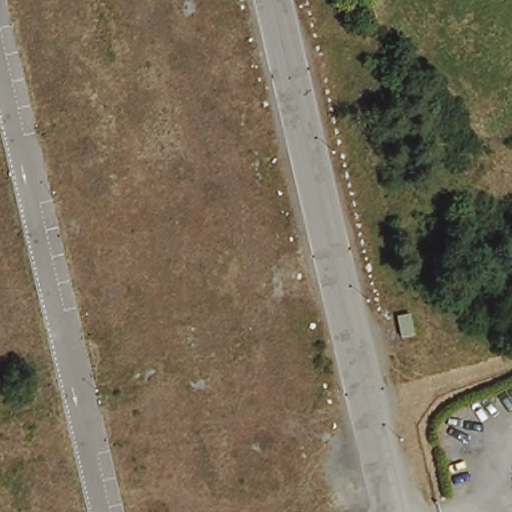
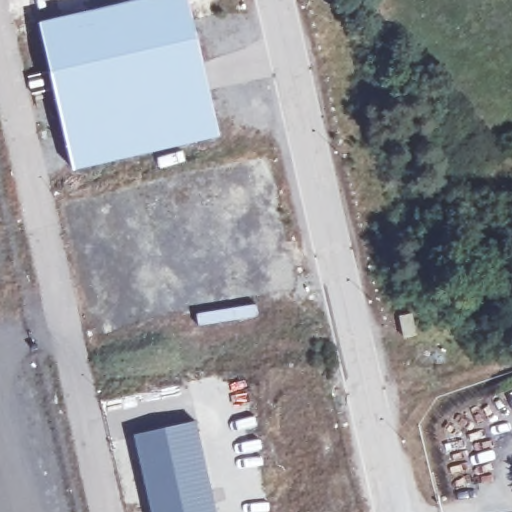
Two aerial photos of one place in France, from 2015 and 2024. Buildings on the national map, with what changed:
new [(40,24),(142,0),(188,0),(218,137),(73,168),(40,24)]
new [(215,512),(150,512),(132,433),(195,419),(215,512)]

